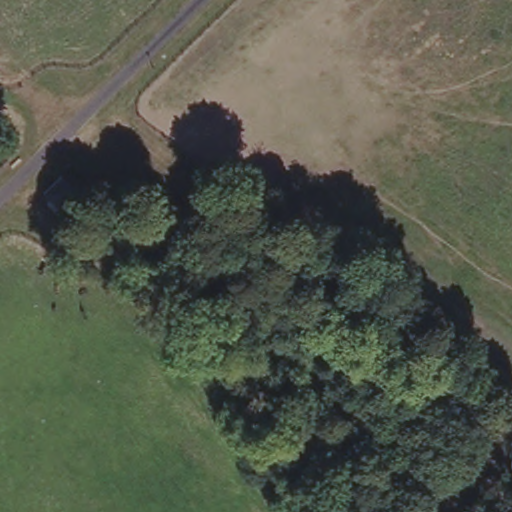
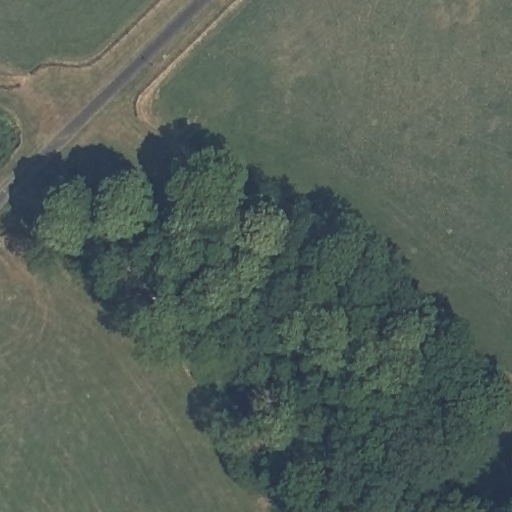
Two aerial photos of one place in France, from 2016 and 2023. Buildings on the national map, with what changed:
unchanged [(94,202),(77,220),(48,194),(66,177),(94,202)]

